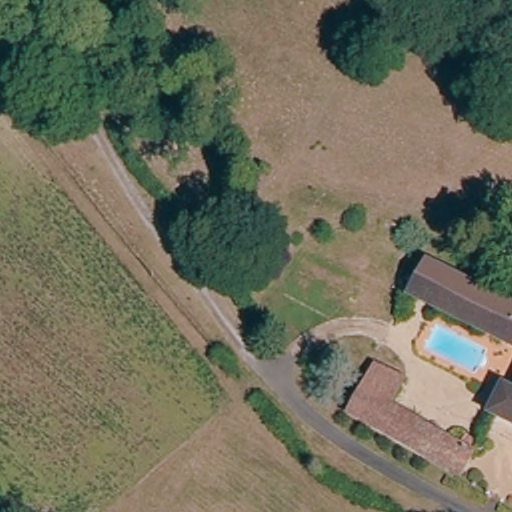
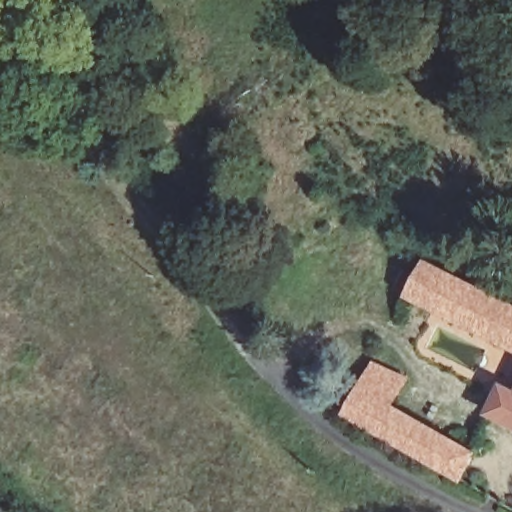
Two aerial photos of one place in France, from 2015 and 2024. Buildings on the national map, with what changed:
unchanged [(512,350),(409,297),(424,267),(512,310),(512,350)]
unchanged [(378,366),(408,382),(392,406),(475,454),(461,479),(345,414),(378,366)]
unchanged [(500,387),(512,392),(512,423),(488,411),(500,387)]

